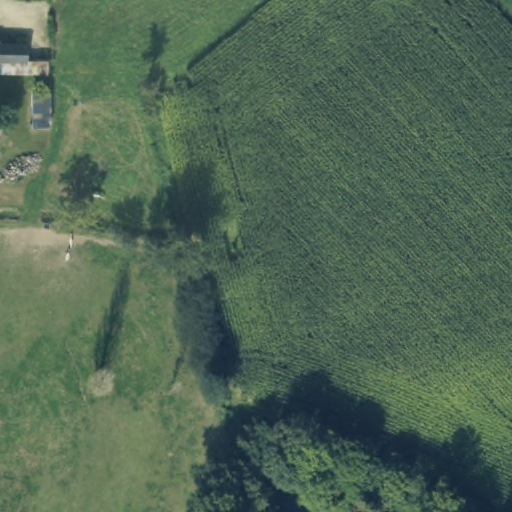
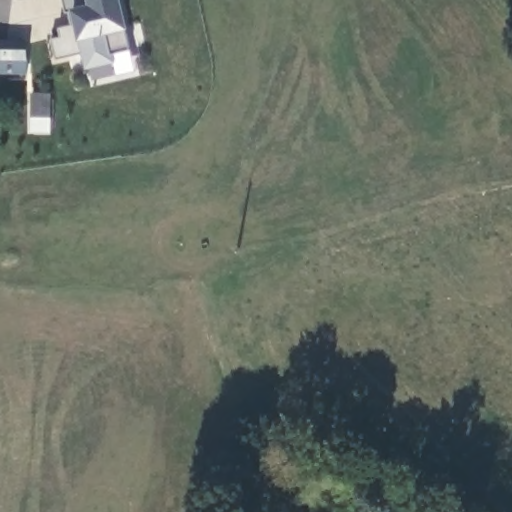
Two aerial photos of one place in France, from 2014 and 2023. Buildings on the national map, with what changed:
new [(61,36),(59,27),(73,24),(70,11),(66,12),(64,0),(122,0),(129,27),(125,28),(130,49),(114,52),(116,61),(86,69),(82,53),(57,58),(53,38),(61,36)]
unchanged [(0,44),(24,45),(24,58),(24,61),(0,60),(0,44)]

